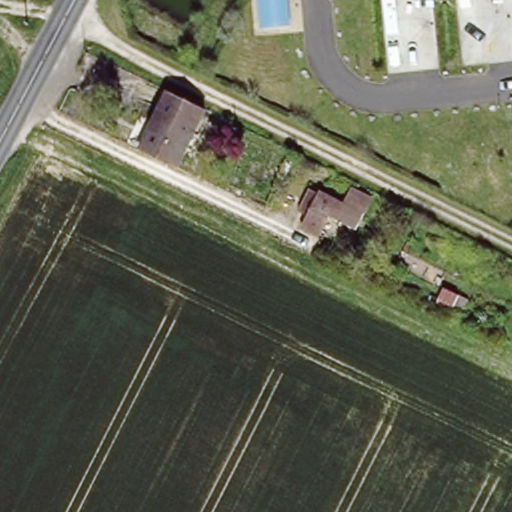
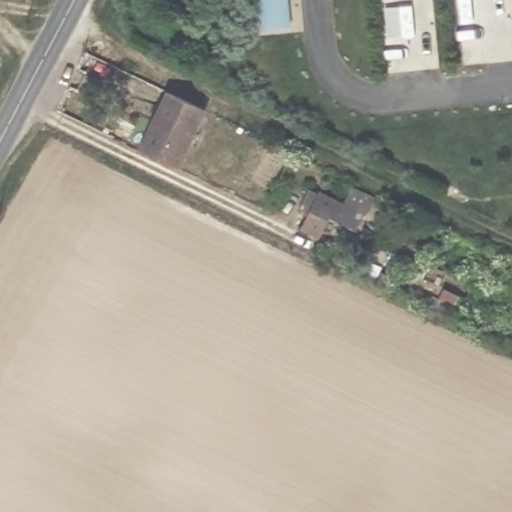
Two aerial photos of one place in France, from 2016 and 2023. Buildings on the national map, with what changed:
unchanged [(289,28),(259,30),(257,0),(287,0),(289,28)]
unchanged [(145,151),(173,93),(207,109),(179,168),(145,151)]
unchanged [(308,185),(344,200),(352,185),(371,194),(356,235),(328,223),(321,239),(293,226),(308,185)]

